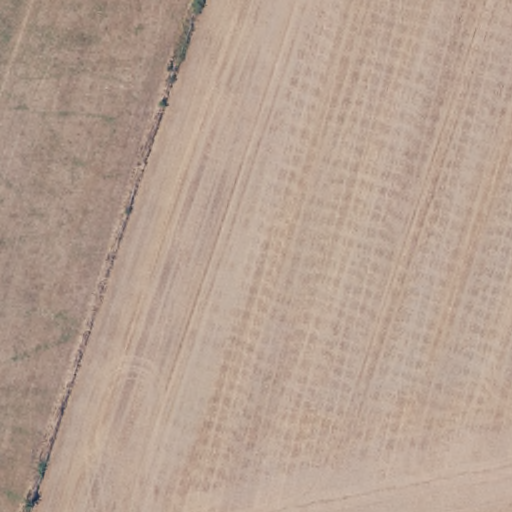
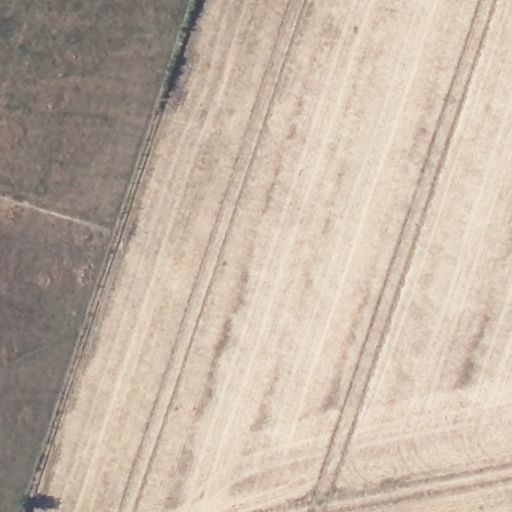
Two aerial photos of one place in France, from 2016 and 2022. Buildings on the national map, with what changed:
[]

